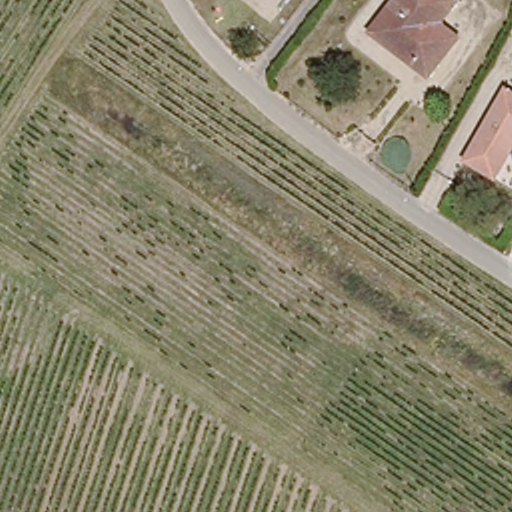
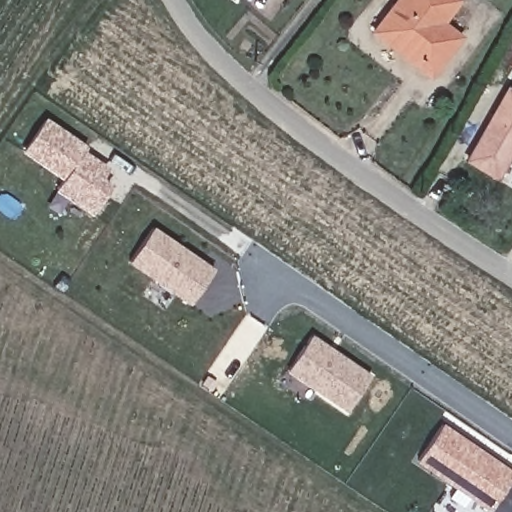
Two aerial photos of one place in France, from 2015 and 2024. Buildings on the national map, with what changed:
unchanged [(380,19),(395,0),(459,0),(442,21),(459,36),(428,72),(415,61),(372,28),(380,19)]
unchanged [(512,93),(512,145),(493,175),(465,160),(506,90),(512,93)]
new [(83,149),(108,166),(102,177),(112,185),(91,215),(54,190),(61,180),(21,151),(45,117),(85,145),(83,149)]
new [(190,305),(127,262),(152,226),(214,269),(190,305)]
new [(347,412),(286,371),(310,334),(372,375),(347,412)]
new [(489,512),(415,461),(442,422),(512,471),(512,478),(489,512)]

